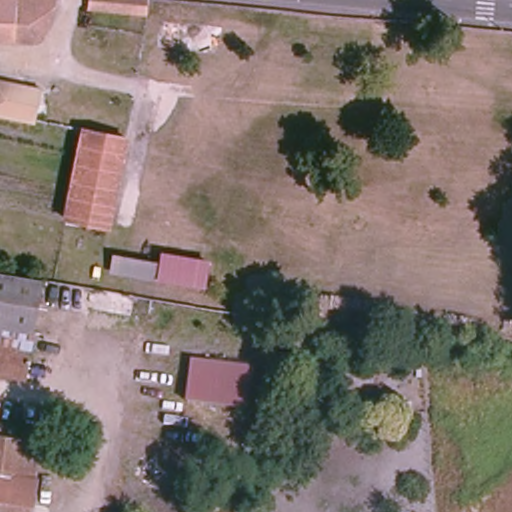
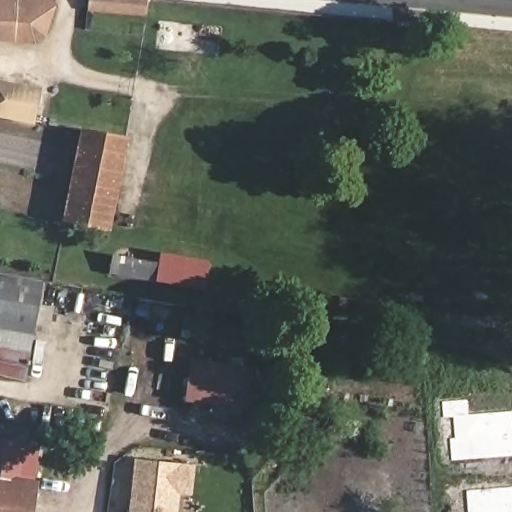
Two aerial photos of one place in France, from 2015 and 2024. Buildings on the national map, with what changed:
unchanged [(54,9),(49,21),(40,33),(32,41),(0,39),(0,0),(54,0),(54,9)]
unchanged [(145,13),(87,8),(88,0),(147,0),(145,13)]
unchanged [(22,117),(0,113),(0,80),(35,85),(29,118),(22,117)]
unchanged [(113,184),(104,230),(64,223),(83,132),(124,139),(113,184)]
unchanged [(154,265),(151,282),(110,274),(114,258),(154,265)]
unchanged [(30,281),(36,282),(21,381),(5,374),(0,374),(0,276),(30,281)]
unchanged [(252,367),(245,409),(179,398),(185,356),(252,367)]
new [(449,438),(455,437),(452,416),(443,417),(441,402),(467,399),(468,414),(512,411),(512,456),(450,461),(449,438)]
unchanged [(40,483),(37,512),(0,512),(0,442),(9,443),(10,433),(31,437),(30,445),(42,447),(37,481),(40,483)]
demolished [(217,463),(210,462),(204,460),(206,453),(212,455),(219,457),(217,463)]
new [(194,465),(191,496),(179,495),(177,512),(129,512),(135,458),(194,465)]
new [(512,486),(512,512),(467,512),(465,490),(512,486)]

